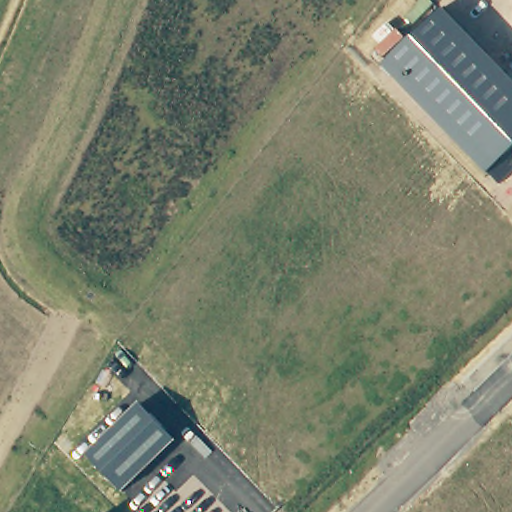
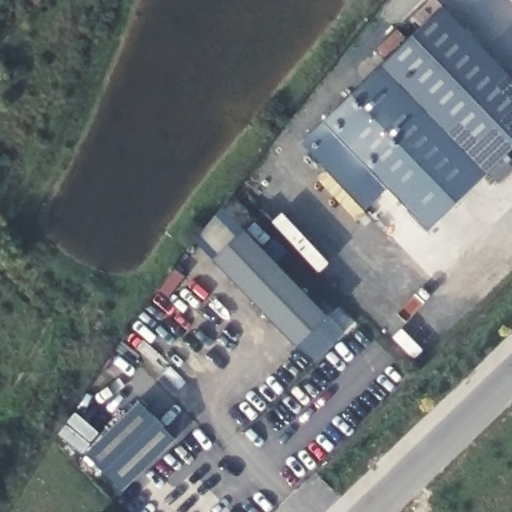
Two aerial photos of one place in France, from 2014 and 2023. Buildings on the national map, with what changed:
unchanged [(487,173),(382,66),(441,8),(512,80),(512,148),(487,173)]
new [(487,173),(429,230),(388,188),(367,208),(302,144),(382,66),(487,173)]
new [(245,229),(327,316),(296,347),(214,261),(245,229)]
unchanged [(124,492),(85,454),(138,401),(175,439),(124,492)]

